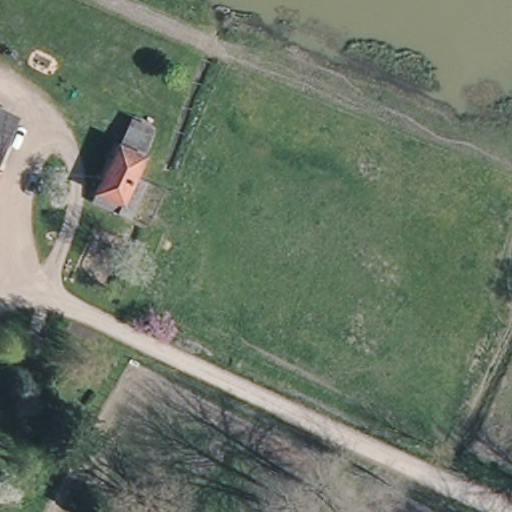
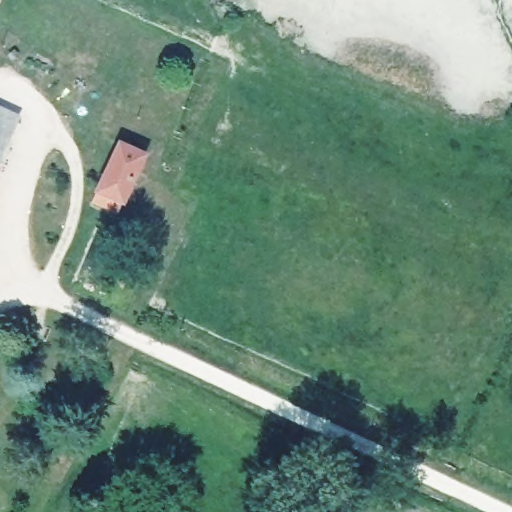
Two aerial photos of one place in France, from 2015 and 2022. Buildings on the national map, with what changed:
unchanged [(19,114),(0,158),(0,106),(19,114)]
unchanged [(93,199),(119,141),(130,116),(155,127),(144,152),(118,210),(93,199)]

